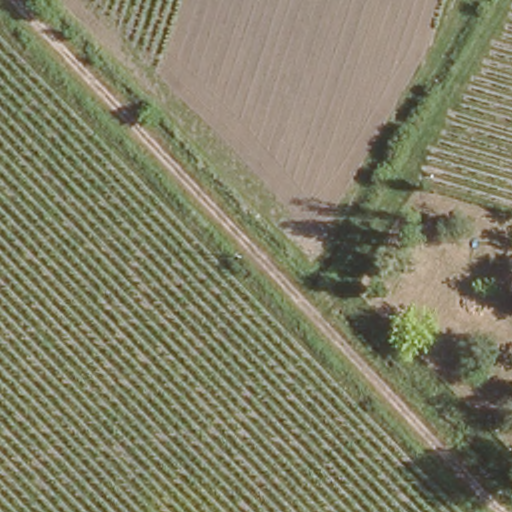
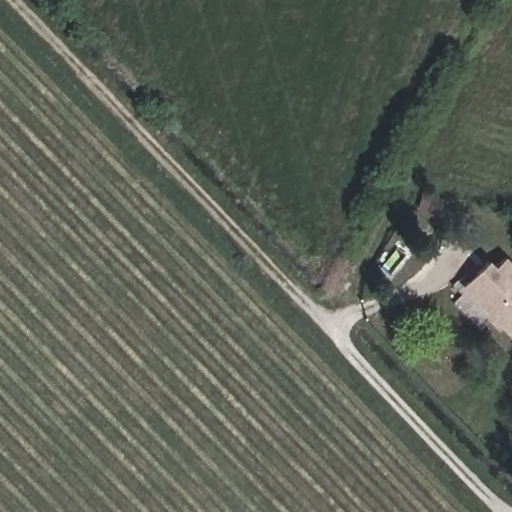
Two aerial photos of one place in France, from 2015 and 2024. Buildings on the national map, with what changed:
new [(480,330),(454,303),(462,296),(451,285),(475,263),(480,269),(490,260),(496,266),(506,256),(512,262),(512,335),(511,336),(493,317),(480,330)]

